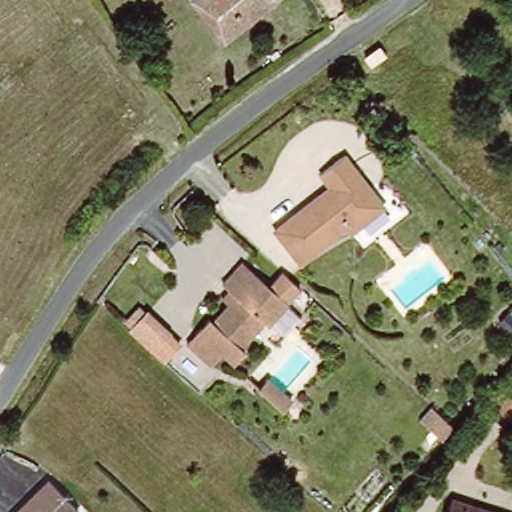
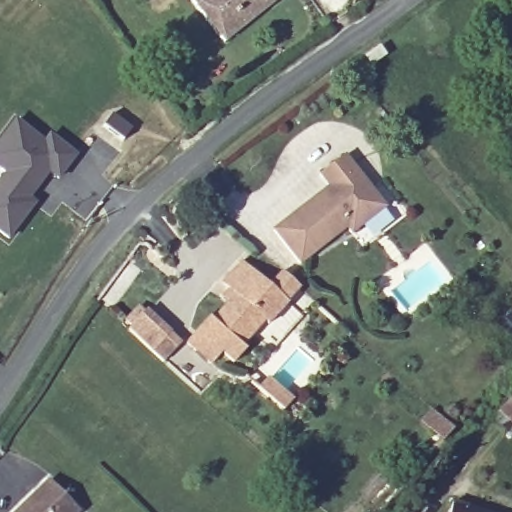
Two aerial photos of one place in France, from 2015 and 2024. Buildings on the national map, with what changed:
unchanged [(187,0),(278,0),(221,42),(187,0)]
new [(1,166),(19,145),(6,135),(18,120),(46,142),(51,135),(76,155),(58,177),(49,170),(33,190),(29,187),(24,194),(33,202),(6,235),(0,230),(0,181),(8,172),(1,166)]
unchanged [(344,159),(385,210),(351,236),(347,231),(299,266),(275,232),(329,192),(321,179),(344,159)]
unchanged [(246,260),(291,303),(271,322),(267,321),(243,346),(246,349),(236,360),(225,351),(211,364),(188,342),(209,316),(214,319),(229,303),(223,296),(232,287),(227,281),(246,260)]
unchanged [(181,344),(162,362),(120,323),(140,303),(181,344)]
unchanged [(257,388),(274,403),(282,410),(273,419),(249,397),(257,388)]
unchanged [(512,406),(512,426),(501,417),(512,406)]
unchanged [(447,427),(435,440),(415,422),(427,409),(447,427)]
unchanged [(76,510),(74,512),(18,512),(46,481),(76,510)]
unchanged [(487,512),(450,512),(454,500),(487,512)]

